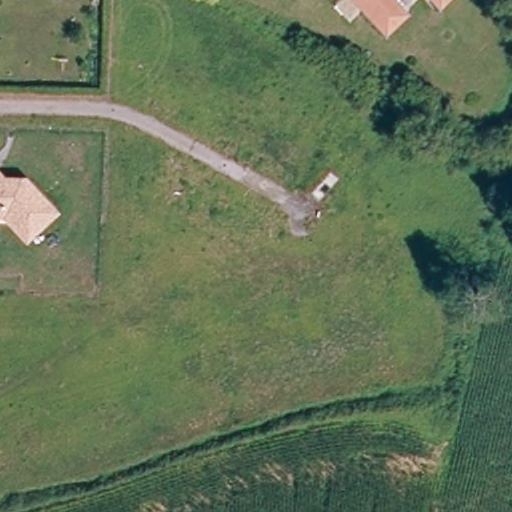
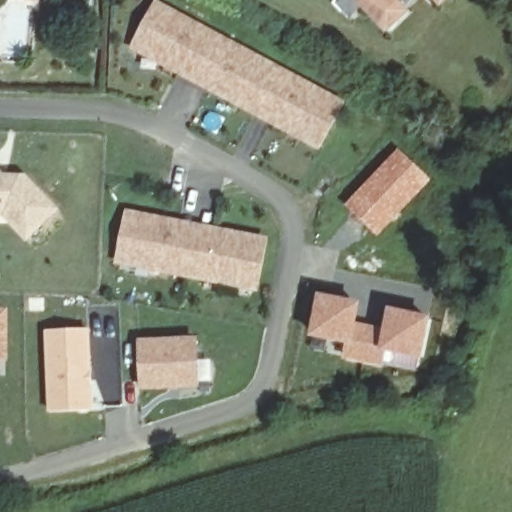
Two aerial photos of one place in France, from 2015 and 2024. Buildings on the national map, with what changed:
new [(346,102),(321,149),(130,47),(155,0),(159,0),(346,102)]
unchanged [(384,23),(377,16),(359,0),(399,0),(402,3),(384,23)]
new [(398,147),(432,179),(377,238),(344,205),(398,147)]
unchanged [(25,179),(56,214),(27,240),(5,214),(0,214),(0,176),(2,178),(25,179)]
new [(271,234),(260,290),(115,261),(126,207),(271,234)]
new [(320,299),(349,305),(355,311),(352,327),(387,334),(390,312),(427,320),(421,355),(383,348),(381,363),(346,357),(349,341),(314,335),(320,299)]
new [(7,360),(0,360),(0,307),(8,307),(7,360)]
new [(90,327),(92,408),(47,411),(44,329),(90,327)]
new [(141,391),(139,339),(197,336),(200,389),(141,391)]

